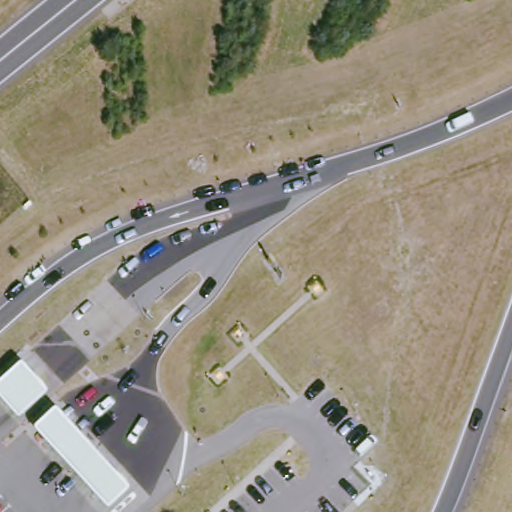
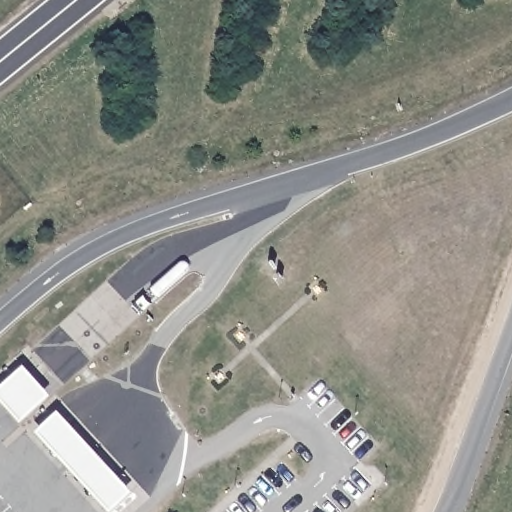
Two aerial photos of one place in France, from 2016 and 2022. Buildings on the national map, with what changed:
unchanged [(45,397),(21,419),(0,397),(0,391),(20,371),(45,397)]
unchanged [(55,414),(127,490),(107,509),(34,433),(55,414)]

